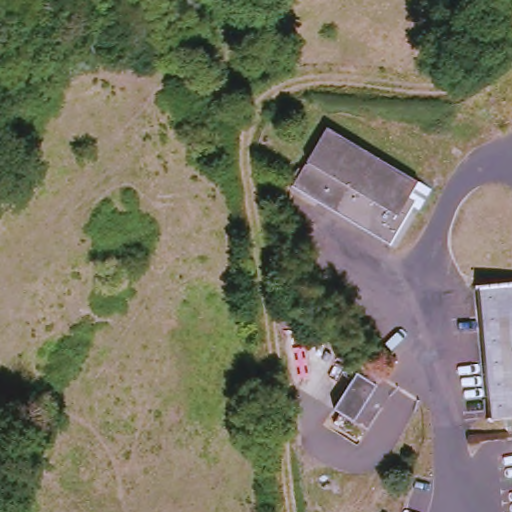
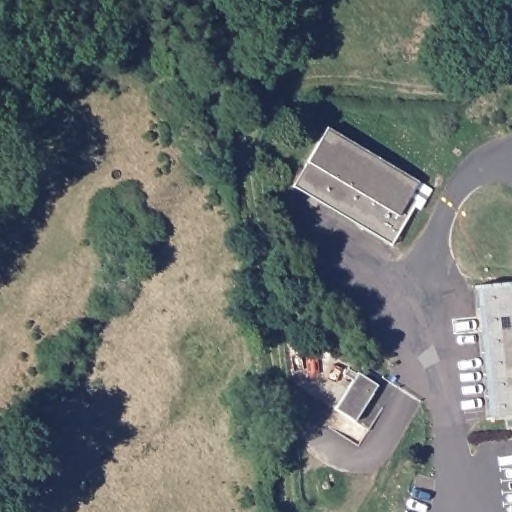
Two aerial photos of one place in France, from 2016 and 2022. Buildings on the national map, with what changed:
unchanged [(305,185),(335,129),(426,182),(439,190),(427,209),(421,205),(400,243),(305,185)]
unchanged [(512,285),(512,421),(499,422),(482,290),(512,285)]
unchanged [(345,401),(366,366),(385,379),(365,413),(345,401)]

